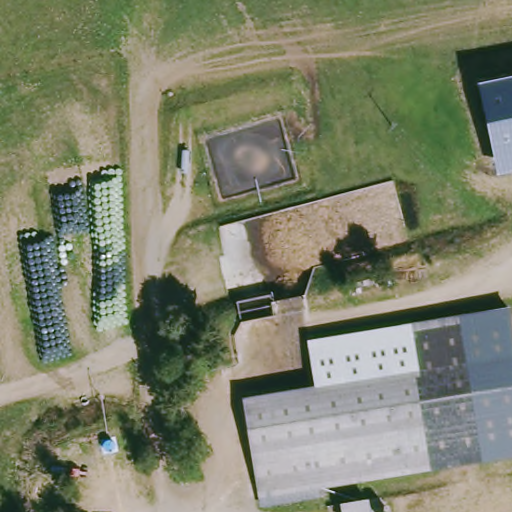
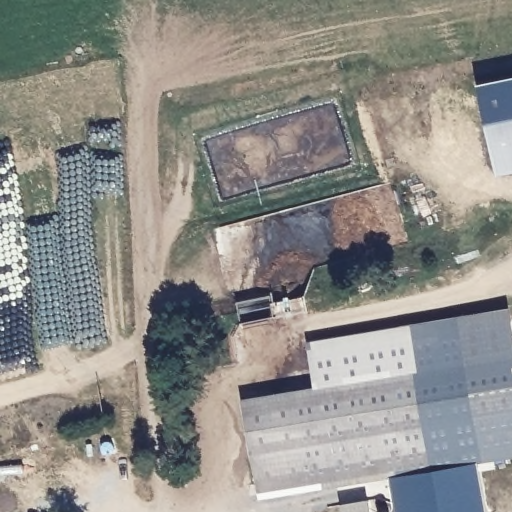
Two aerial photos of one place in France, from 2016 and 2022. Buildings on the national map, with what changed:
unchanged [(512,74),(512,170),(496,174),(478,81),(512,74)]
unchanged [(511,306),(512,312),(512,458),(487,462),(260,500),(243,397),(315,385),(308,340),(462,314),(511,306)]
new [(391,478),(477,464),(484,512),(396,512),(391,478)]
unchanged [(368,495),(371,512),(341,512),(340,499),(368,495)]

